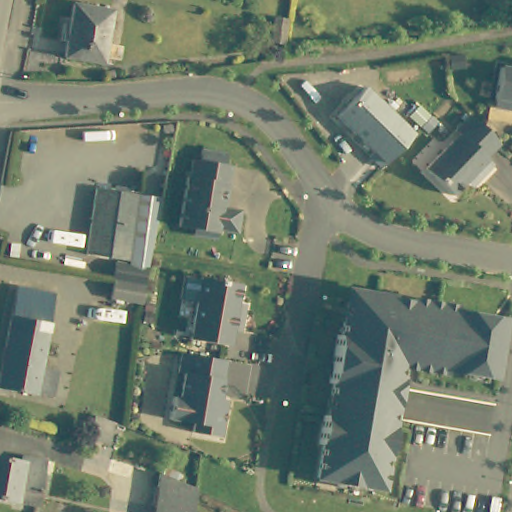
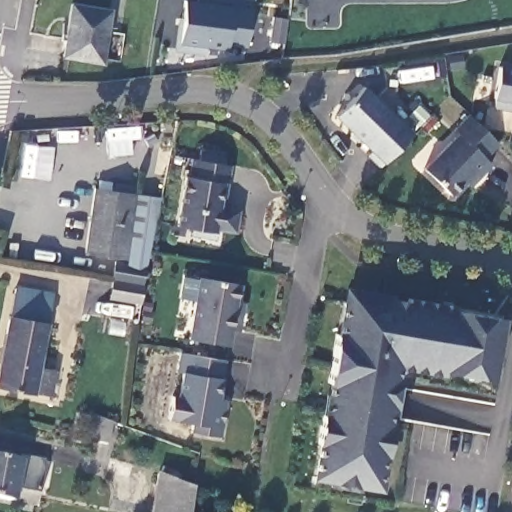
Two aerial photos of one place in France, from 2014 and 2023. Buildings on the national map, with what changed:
new [(178,41),(183,0),(191,0),(195,0),(251,0),(246,47),(226,45),(226,48),(178,41)]
unchanged [(111,11),(102,62),(64,56),(73,4),(111,11)]
unchanged [(512,108),(493,105),(495,96),(494,95),(500,64),(512,66),(512,108)]
unchanged [(365,84),(412,132),(380,164),(368,153),(373,148),(337,112),(365,84)]
unchanged [(459,132),(473,118),(502,146),(488,161),(495,167),(481,181),(476,175),(454,198),(427,171),(462,136),(459,132)]
unchanged [(188,174),(190,156),(198,157),(200,146),(225,150),(223,161),(230,162),(227,181),(223,180),(219,204),(238,207),(235,229),(215,226),(214,235),(189,231),(190,226),(176,223),(184,173),(188,174)]
unchanged [(112,296),(104,295),(107,279),(105,279),(108,260),(84,257),(94,192),(114,195),(134,197),(126,260),(126,262),(146,264),(141,285),(140,300),(112,296)]
unchanged [(134,197),(158,201),(149,249),(146,262),(126,260),(134,197)]
unchanged [(238,281),(233,310),(240,311),(238,329),(230,327),(227,343),(188,337),(198,275),(238,281)]
unchanged [(56,292),(43,365),(59,368),(54,393),(38,390),(38,392),(0,385),(0,382),(19,285),(56,292)]
unchanged [(328,383),(336,334),(341,334),(346,301),(388,307),(389,299),(409,302),(409,298),(453,305),(452,309),(502,317),(493,377),(442,369),(441,372),(396,365),(394,376),(398,377),(393,408),(389,407),(386,425),(389,426),(384,456),(380,455),(375,488),(315,478),(320,444),(317,444),(322,414),(326,415),(331,383),(328,383)]
unchanged [(180,375),(184,355),(229,363),(222,409),(229,410),(226,431),(222,431),(221,439),(195,435),(196,426),(172,422),(176,400),(182,401),(186,376),(180,375)]
unchanged [(115,429),(111,450),(91,447),(96,422),(115,429)]
unchanged [(32,505),(15,502),(0,499),(0,459),(14,461),(15,455),(24,457),(40,459),(32,505)]
unchanged [(193,484),(190,507),(189,512),(151,512),(157,470),(193,484)]

